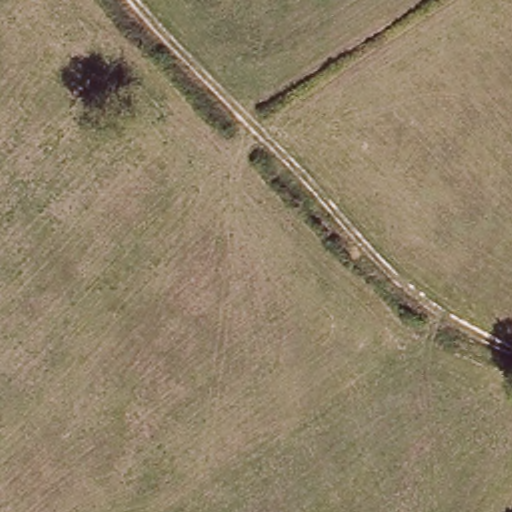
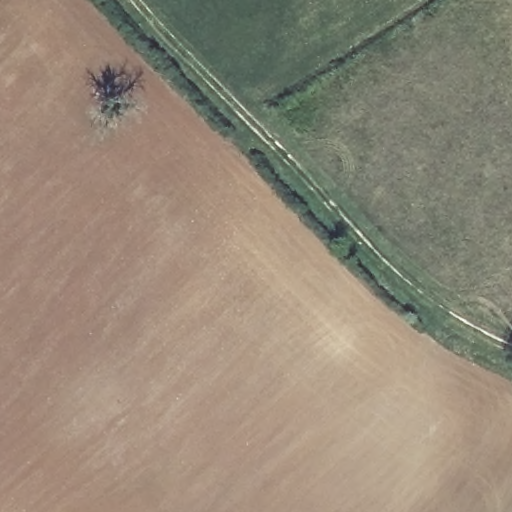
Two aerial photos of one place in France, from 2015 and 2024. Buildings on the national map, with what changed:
[]

